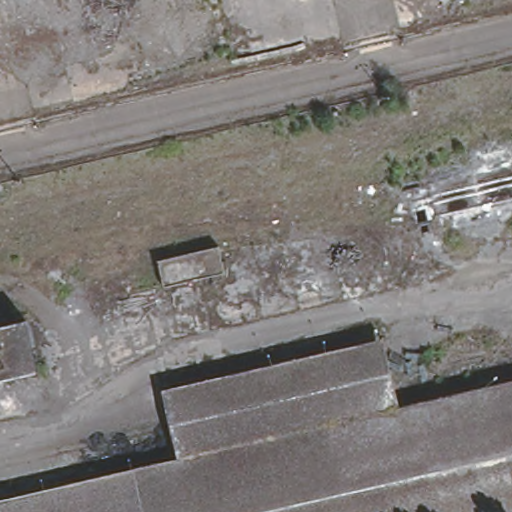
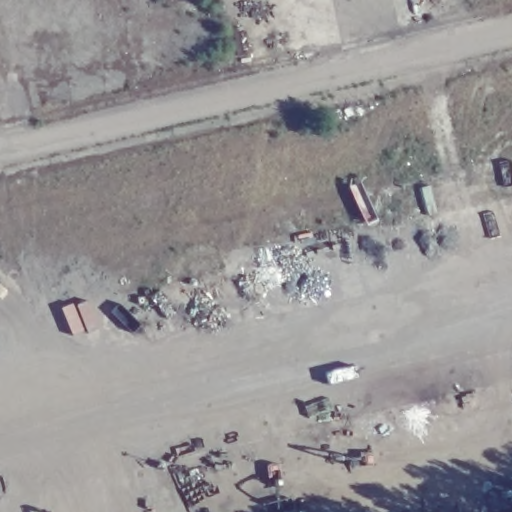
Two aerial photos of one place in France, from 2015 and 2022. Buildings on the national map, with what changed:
demolished [(401,203),(512,178),(512,215),(409,239),(401,203)]
demolished [(213,247),(219,274),(155,288),(149,261),(213,247)]
demolished [(158,388),(374,339),(391,410),(174,459),(158,388)]
demolished [(28,343),(36,377),(0,385),(0,349),(28,343)]
demolished [(512,512),(0,512),(0,498),(174,459),(391,410),(512,382),(512,512)]

